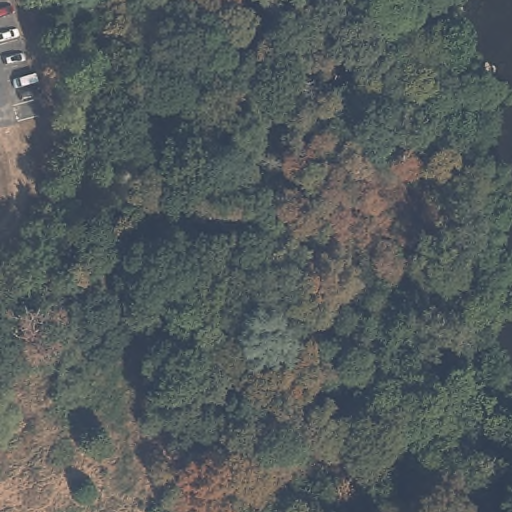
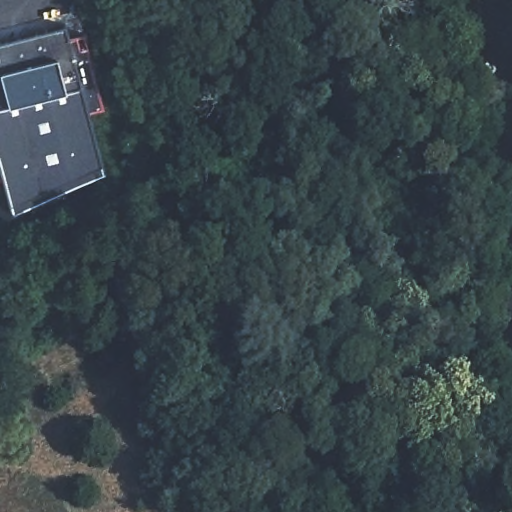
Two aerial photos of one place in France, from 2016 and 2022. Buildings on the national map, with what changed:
new [(81,33),(101,106),(85,111),(100,171),(10,213),(1,177),(0,177),(0,42),(61,27),(65,37),(81,33)]

